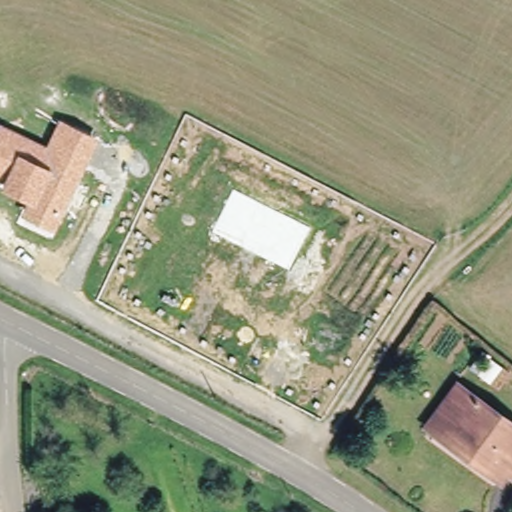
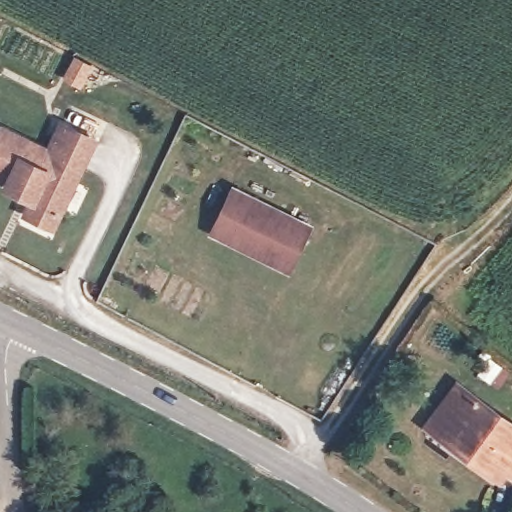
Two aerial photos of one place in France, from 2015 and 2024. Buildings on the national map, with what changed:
unchanged [(98,137),(56,230),(22,217),(29,202),(2,190),(5,182),(0,180),(0,124),(47,147),(59,121),(98,137)]
new [(291,273),(210,234),(232,185),(312,224),(291,273)]
unchanged [(432,428),(420,420),(453,380),(465,388),(512,423),(512,480),(494,465),(488,471),(432,428)]

